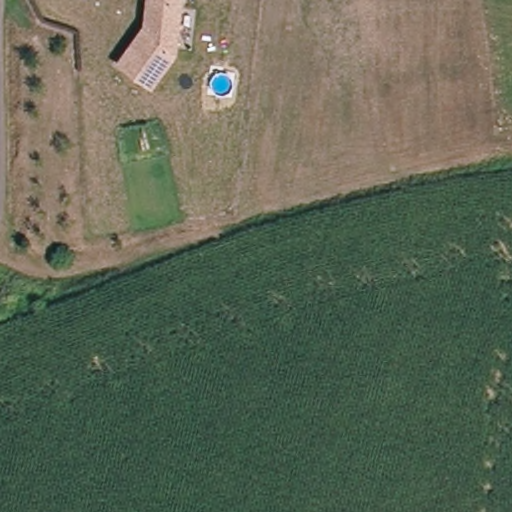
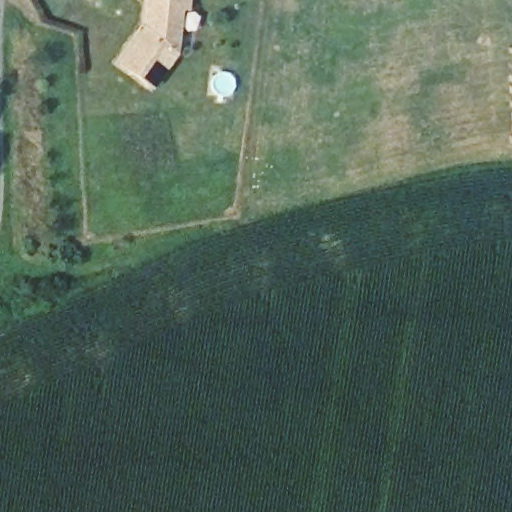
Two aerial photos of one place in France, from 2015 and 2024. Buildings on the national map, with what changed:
unchanged [(172,67),(162,81),(129,60),(156,21),(157,0),(189,0),(184,49),(172,67)]

